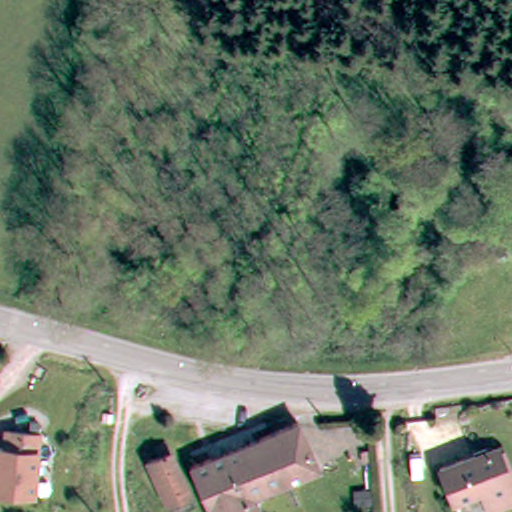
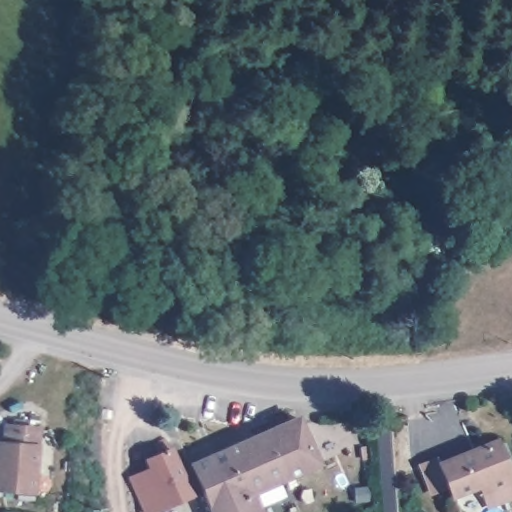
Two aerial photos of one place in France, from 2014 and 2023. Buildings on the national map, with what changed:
unchanged [(299,408),(325,461),(287,479),(263,425),(299,408)]
unchanged [(39,422),(35,486),(0,484),(0,438),(6,438),(7,420),(39,422)]
unchanged [(270,487),(282,512),(217,512),(194,459),(263,425),(287,479),(270,487)]
unchanged [(157,460),(150,446),(167,439),(201,512),(166,512),(145,465),(157,460)]
unchanged [(485,497),(477,480),(447,493),(436,460),(494,440),(503,469),(510,486),(485,497)]

